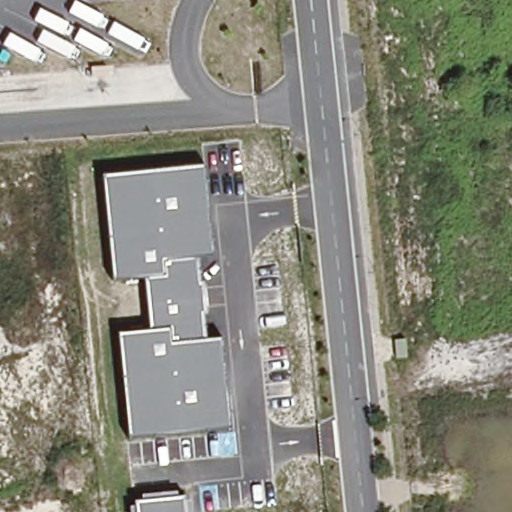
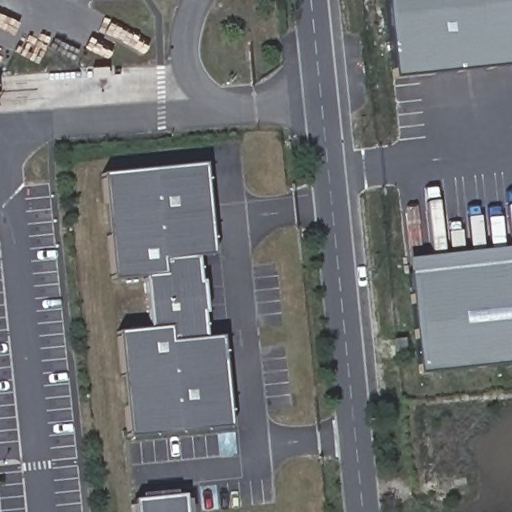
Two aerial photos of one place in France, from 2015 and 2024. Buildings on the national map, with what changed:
new [(401,75),(392,0),(512,0),(512,63),(401,75)]
unchanged [(199,283),(203,283),(205,312),(203,313),(204,339),(220,338),(229,426),(128,435),(118,333),(149,329),(144,276),(113,278),(101,174),(204,165),(213,255),(196,257),(199,283)]
new [(512,248),(512,362),(426,371),(412,258),(512,248)]
unchanged [(178,496),(184,495),(184,501),(190,500),(191,512),(131,512),(130,506),(135,504),(135,499),(142,499),(141,493),(176,490),(178,496)]

